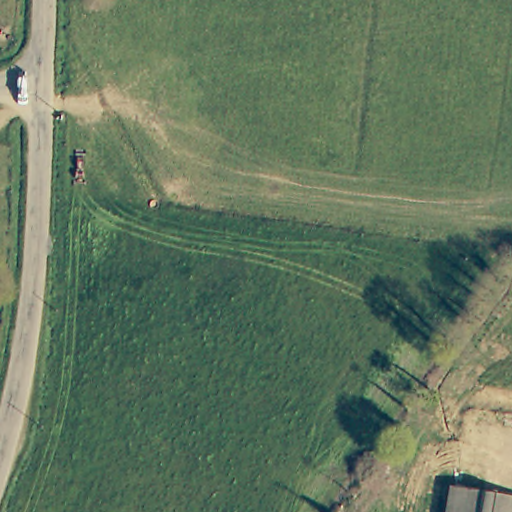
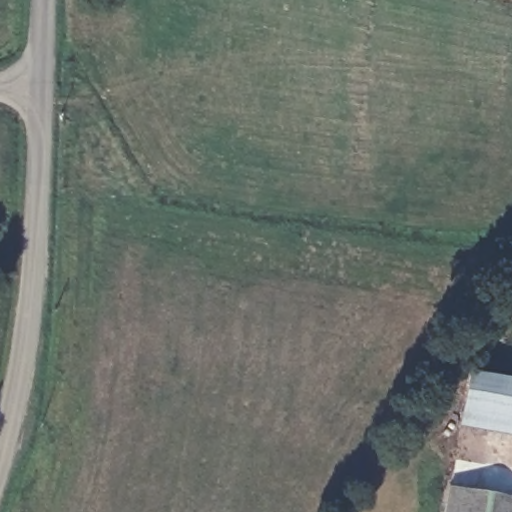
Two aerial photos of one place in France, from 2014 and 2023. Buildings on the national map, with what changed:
new [(471,379),(512,386),(512,428),(465,420),(471,379)]
unchanged [(450,487),(512,498),(512,512),(446,512),(450,487)]

